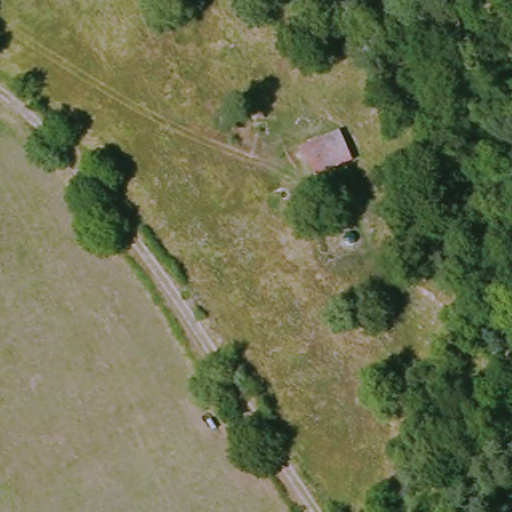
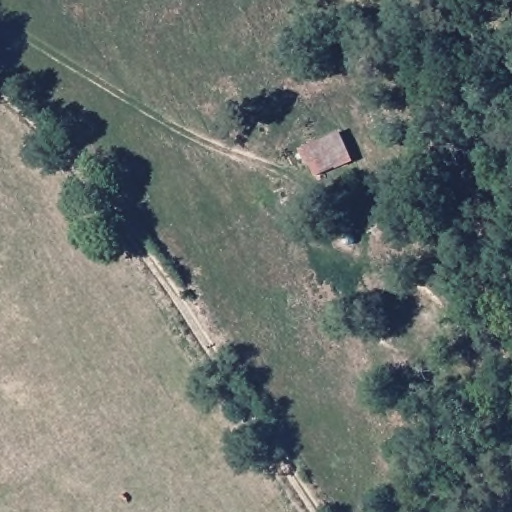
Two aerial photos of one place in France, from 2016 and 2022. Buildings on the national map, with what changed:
unchanged [(300,146),(337,128),(349,159),(315,175),(300,146)]

